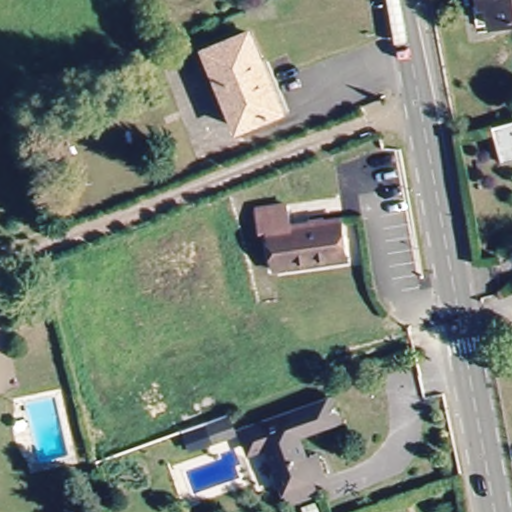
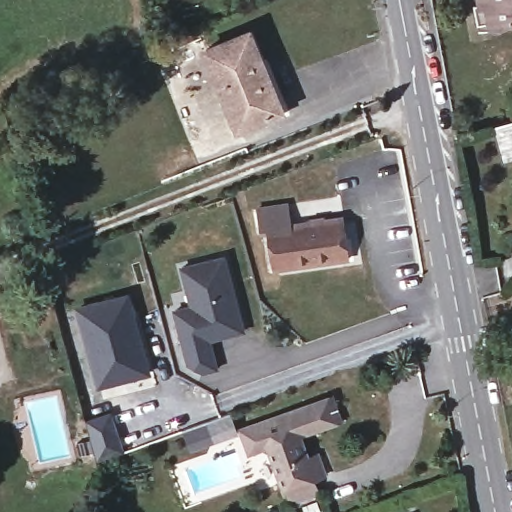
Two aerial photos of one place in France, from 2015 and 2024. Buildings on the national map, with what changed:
unchanged [(485,0),(512,0),(512,21),(484,27),(479,8),(487,6),(485,0)]
unchanged [(258,66),(266,63),(281,108),(232,127),(203,49),(246,31),(258,66)]
unchanged [(512,159),(502,162),(491,126),(512,121),(512,159)]
unchanged [(340,257),(270,267),(265,225),(256,227),(253,209),(286,203),(290,224),(340,216),(343,235),(346,256),(340,257)]
new [(213,341),(199,345),(205,373),(193,376),(177,368),(165,315),(182,311),(172,272),(215,262),(227,310),(233,336),(213,341)]
new [(128,295),(149,371),(130,377),(128,372),(119,375),(120,380),(100,385),(79,308),(128,295)]
unchanged [(290,500),(284,484),(268,439),(250,446),(242,427),(336,393),(344,415),(299,432),(308,455),(322,450),(330,467),(315,473),(321,489),(290,500)]
unchanged [(237,425),(216,432),(211,415),(232,408),(237,425)]

